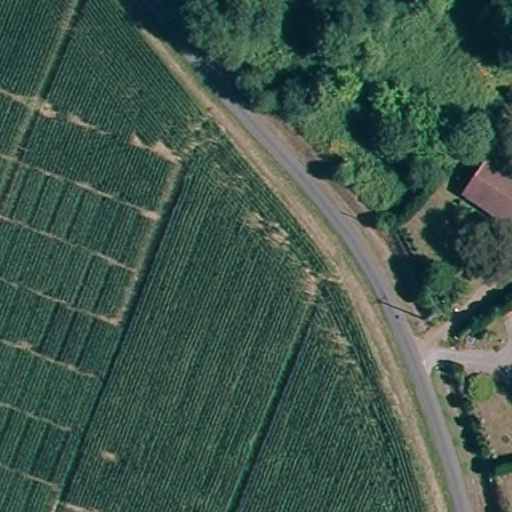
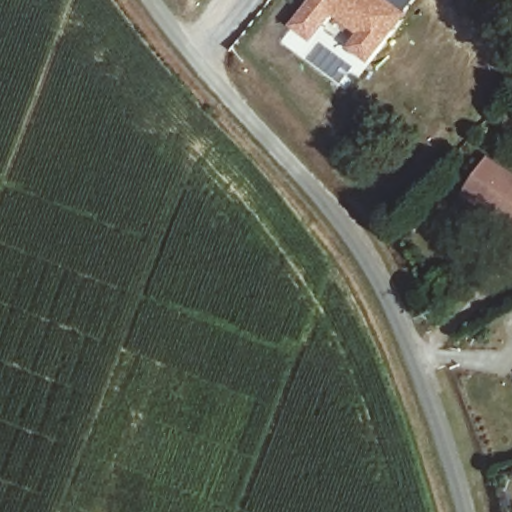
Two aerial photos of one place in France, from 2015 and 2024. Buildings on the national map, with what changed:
new [(312,0),(383,0),(401,15),(366,59),(350,48),(362,31),(332,8),(320,24),(309,38),(293,24),(304,11),(312,0)]
new [(401,15),(383,0),(412,0),(401,15)]
unchanged [(486,162),(512,177),(512,226),(465,199),(486,162)]

